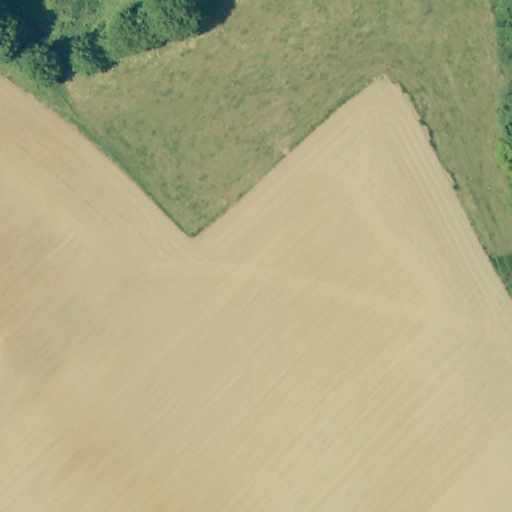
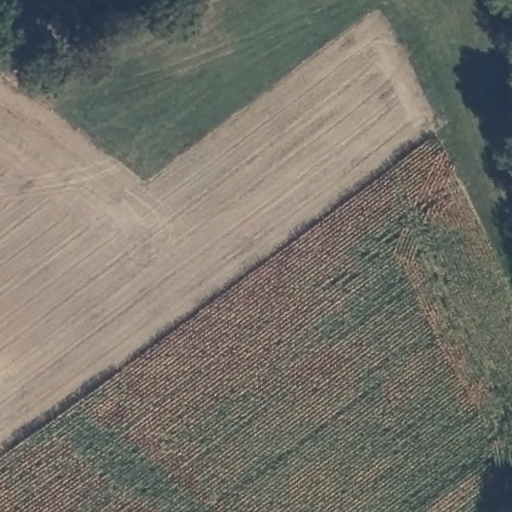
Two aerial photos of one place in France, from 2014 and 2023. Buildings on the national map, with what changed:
[]

